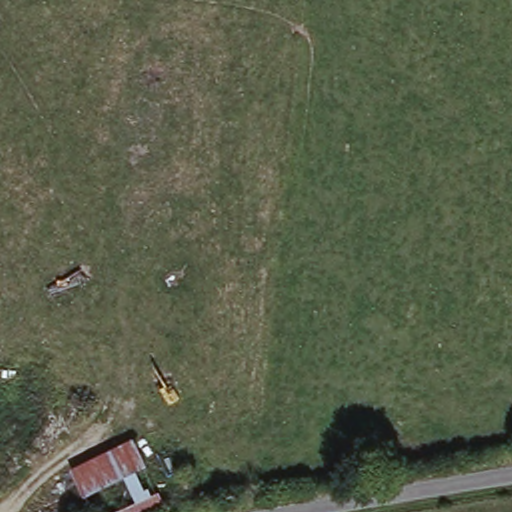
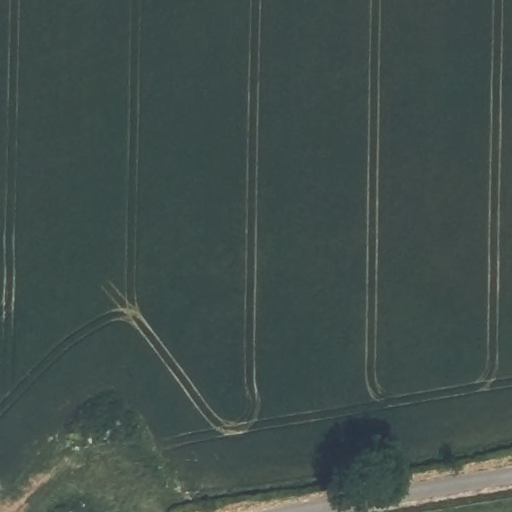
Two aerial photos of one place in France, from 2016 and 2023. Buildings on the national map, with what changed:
demolished [(154,467),(144,471),(155,496),(160,494),(169,512),(119,512),(136,504),(125,480),(85,499),(70,467),(139,435),(154,467)]

